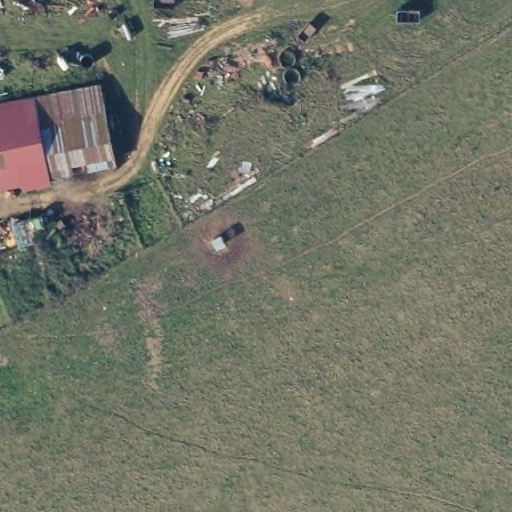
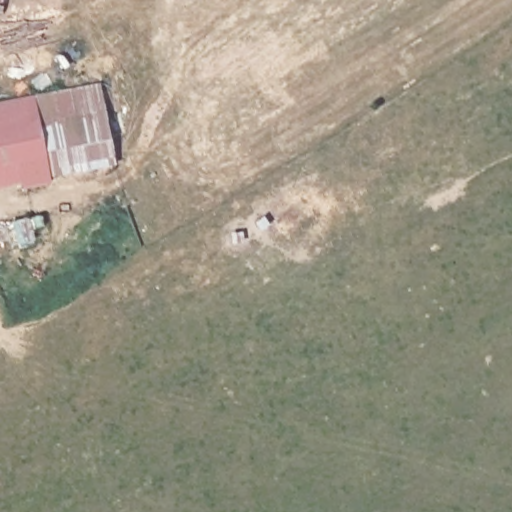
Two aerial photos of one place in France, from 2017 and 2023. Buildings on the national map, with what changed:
unchanged [(100,88),(115,169),(0,193),(0,103),(100,88)]

